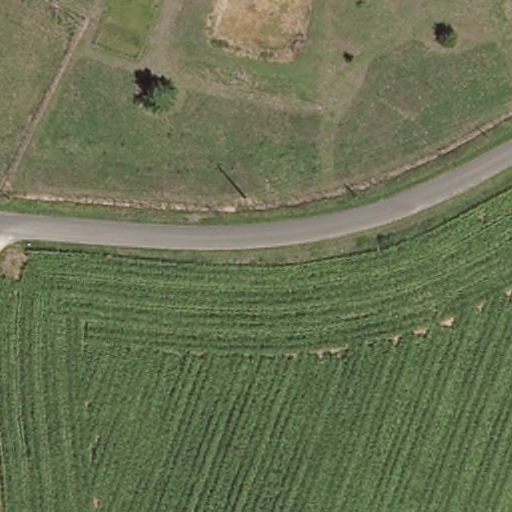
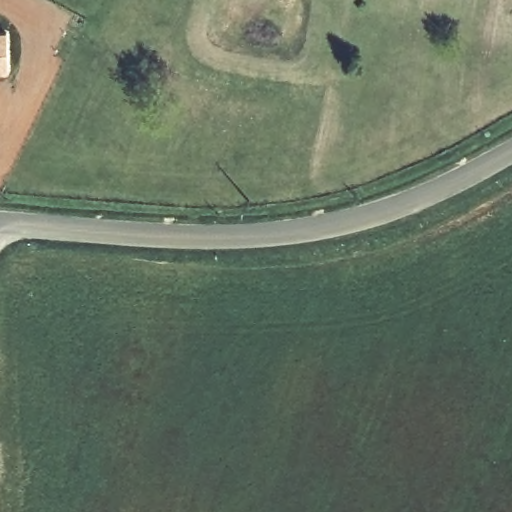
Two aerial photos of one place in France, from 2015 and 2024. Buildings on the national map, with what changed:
new [(11,70),(0,71),(0,32),(9,31),(11,70)]

